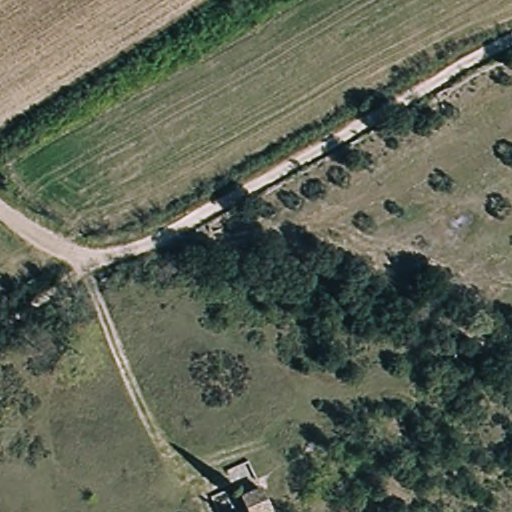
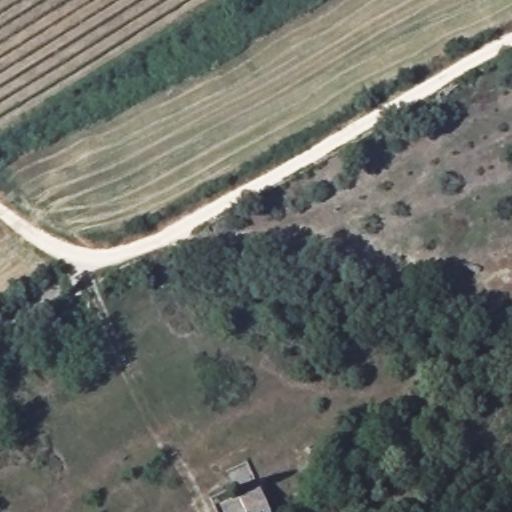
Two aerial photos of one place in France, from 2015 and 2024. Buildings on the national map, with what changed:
unchanged [(255,491),(264,511),(260,512),(240,512),(235,499),(255,491)]

